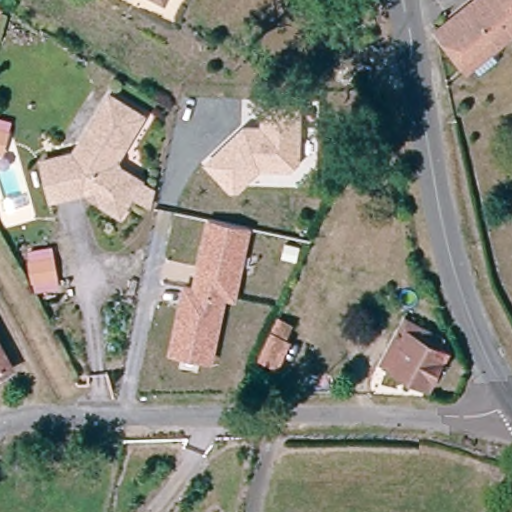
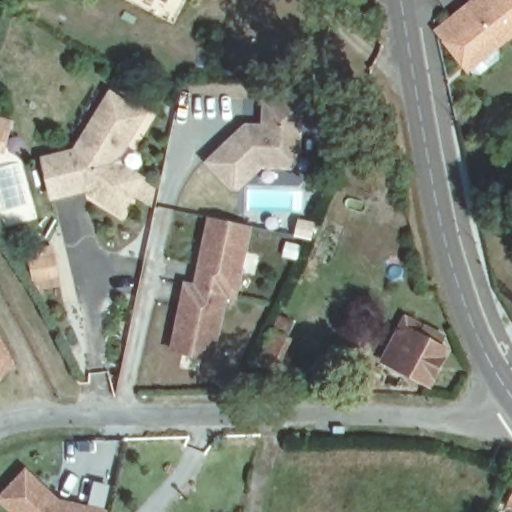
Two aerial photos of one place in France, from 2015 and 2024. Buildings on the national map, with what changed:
unchanged [(464,56),(438,25),(468,0),(512,0),(512,29),(497,41),(502,47),(501,54),(482,70),(475,69),(464,56)]
unchanged [(57,197),(47,160),(79,152),(114,94),(146,114),(121,156),(124,166),(130,170),(145,178),(136,193),(125,211),(102,197),(88,189),(57,197)]
unchanged [(244,123),(261,124),(262,102),(303,105),(301,160),(292,168),(261,168),(240,190),(230,191),(204,162),(244,123)]
unchanged [(0,153),(0,129),(8,131),(13,133),(6,155),(1,153),(0,153)]
unchanged [(183,281),(193,283),(208,217),(252,226),(238,300),(228,298),(215,362),(169,351),(183,281)]
unchanged [(60,285),(34,289),(28,249),(52,244),(60,285)]
unchanged [(403,310),(445,331),(441,340),(450,344),(431,384),(380,361),(403,310)]
unchanged [(277,326),(297,335),(285,363),(265,354),(277,326)]
unchanged [(13,371),(0,377),(0,345),(13,371)]
new [(107,512),(10,512),(0,502),(0,493),(25,466),(58,498),(108,507),(107,512)]
unchanged [(512,512),(511,512),(512,510),(512,512)]

